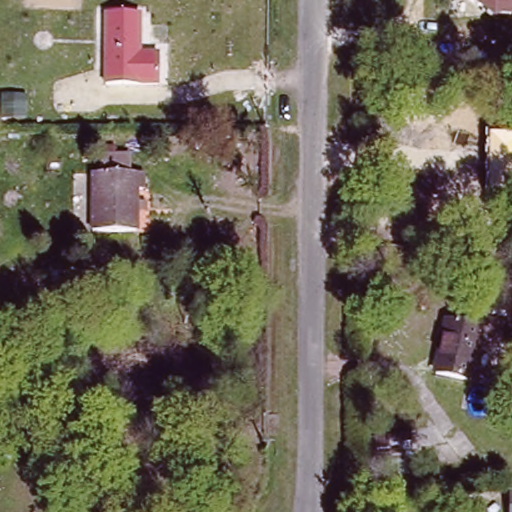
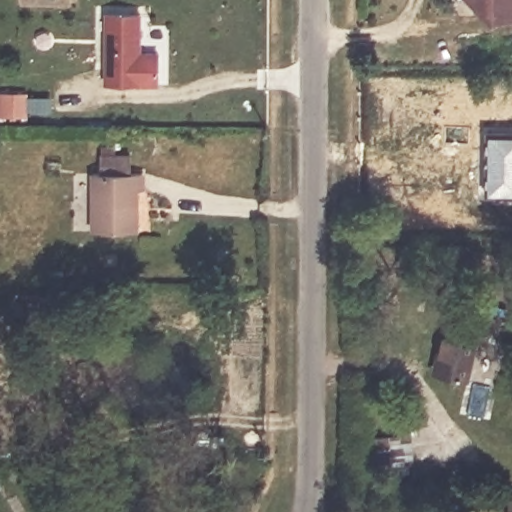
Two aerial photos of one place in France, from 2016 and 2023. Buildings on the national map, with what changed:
unchanged [(466,0),(512,0),(512,18),(481,19),(466,0)]
unchanged [(135,17),(135,57),(153,57),(153,85),(105,85),(105,17),(135,17)]
new [(512,133),(512,194),(485,194),(486,133),(512,133)]
unchanged [(140,168),(140,185),(133,185),(133,229),(91,229),(92,168),(140,168)]
unchanged [(70,276),(70,286),(56,286),(56,276),(70,276)]
unchanged [(478,329),(465,381),(432,375),(443,323),(478,329)]
unchanged [(481,496),(481,512),(463,512),(463,496),(481,496)]

